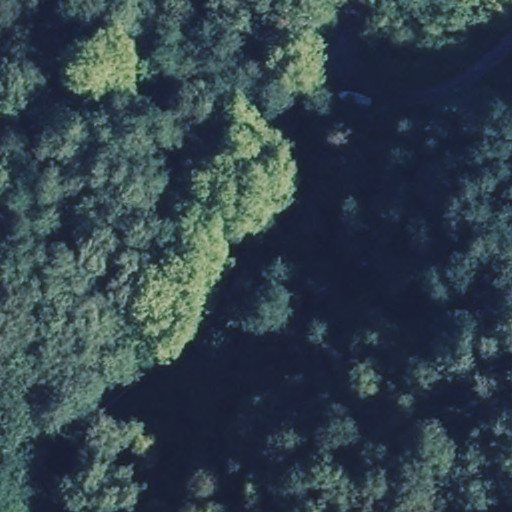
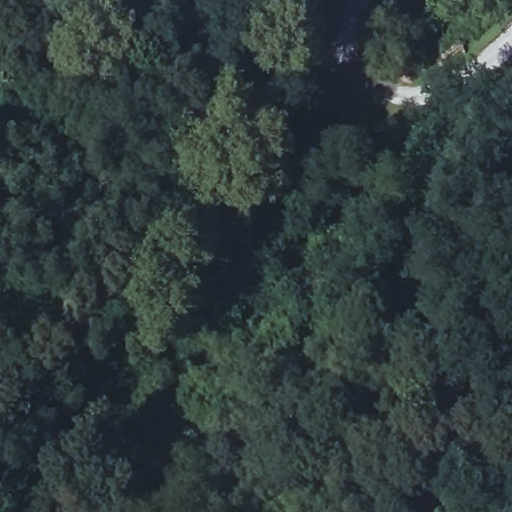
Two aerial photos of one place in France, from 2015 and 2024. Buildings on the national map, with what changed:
unchanged [(292,9),(262,5),(262,0),(294,0),(292,9)]

